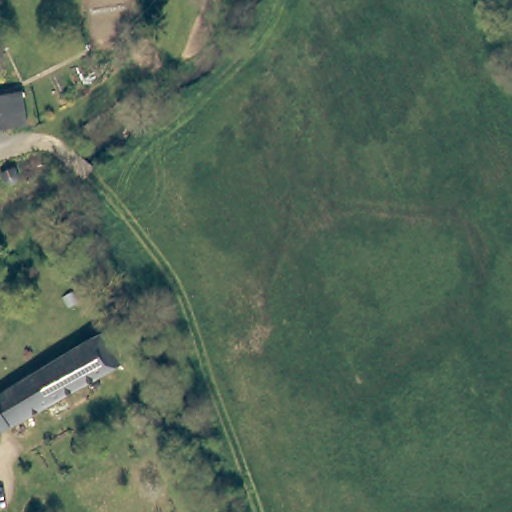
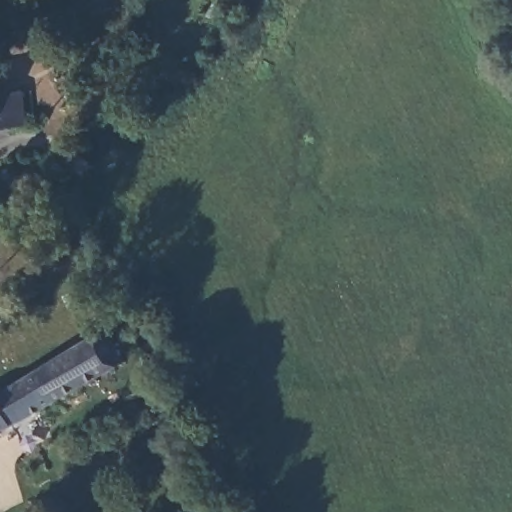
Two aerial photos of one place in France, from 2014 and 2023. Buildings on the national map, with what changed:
unchanged [(18,87),(20,95),(27,123),(0,129),(0,91),(11,89),(18,87)]
unchanged [(0,430),(0,394),(103,328),(121,356),(0,430)]

